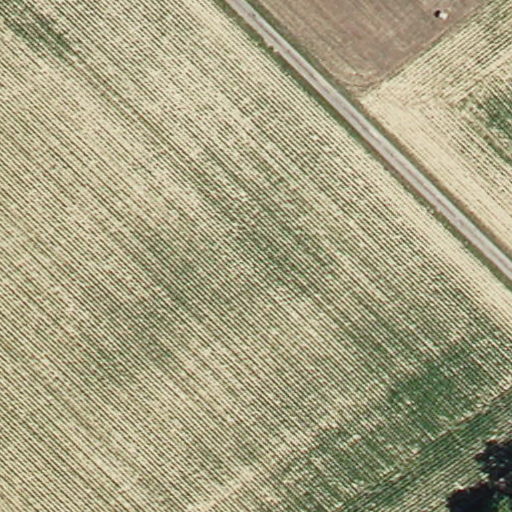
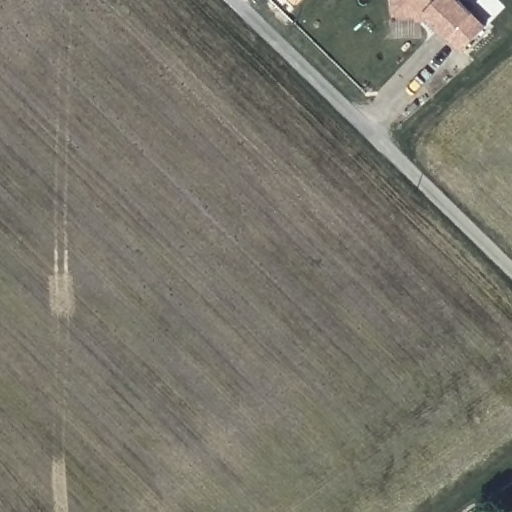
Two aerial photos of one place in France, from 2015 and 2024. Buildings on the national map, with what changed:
new [(453,0),(483,30),(458,52),(424,17),(393,16),(393,0),(453,0)]

